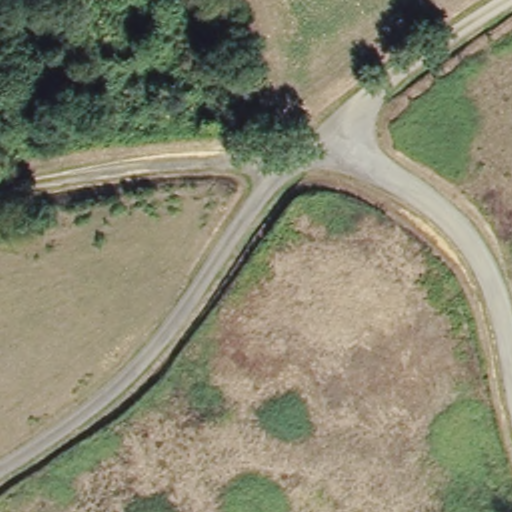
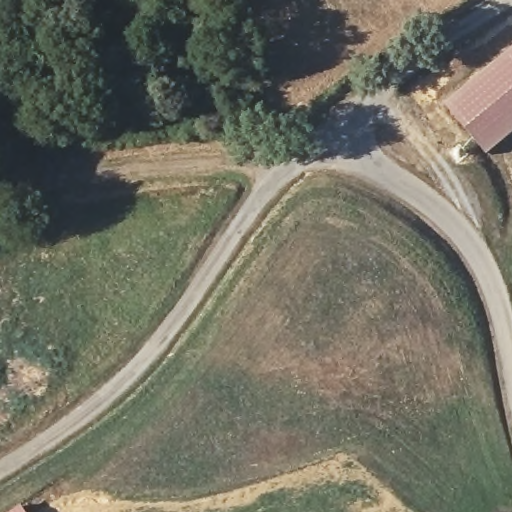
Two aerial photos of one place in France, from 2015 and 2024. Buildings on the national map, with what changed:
new [(445,104),(512,48),(512,132),(487,152),(445,104)]
new [(22,506),(26,512),(13,512),(22,506)]

